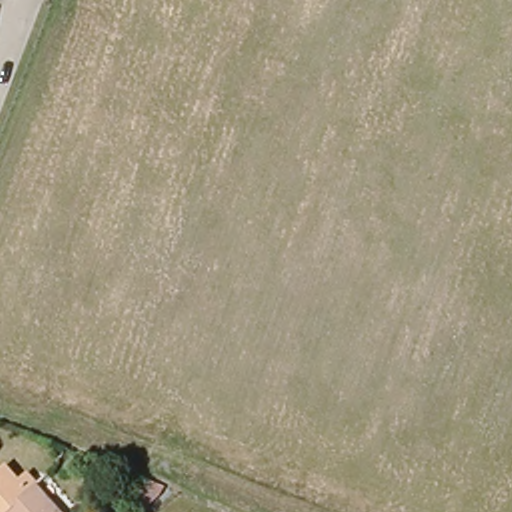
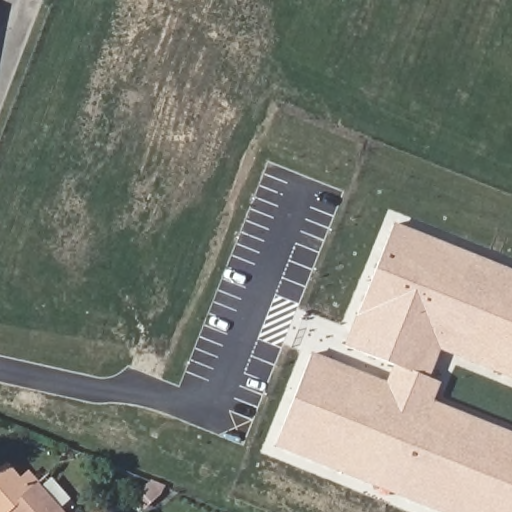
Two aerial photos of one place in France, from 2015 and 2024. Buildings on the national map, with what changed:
new [(385,382),(392,365),(343,346),(354,316),(356,316),(394,223),(512,271),(512,379),(440,350),(429,377),(439,382),(433,401),(512,432),(512,512),(438,512),(273,447),(311,353),(385,382)]
unchanged [(6,463),(12,469),(19,476),(24,472),(59,512),(0,512),(0,468),(6,463)]
unchanged [(135,495),(151,481),(151,480),(161,484),(165,486),(160,494),(146,507),(135,495)]

